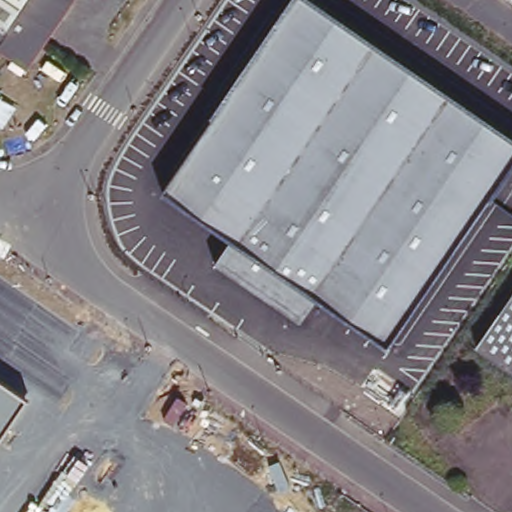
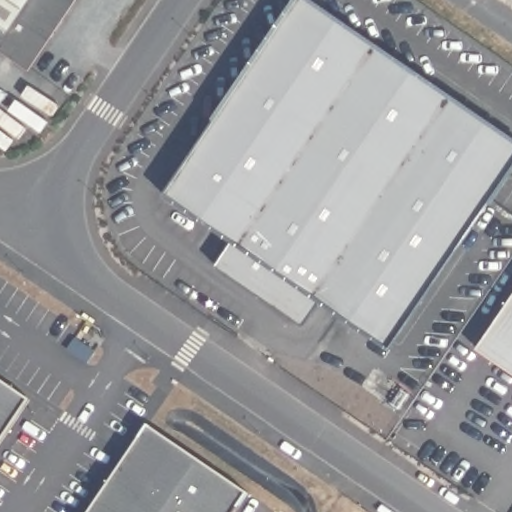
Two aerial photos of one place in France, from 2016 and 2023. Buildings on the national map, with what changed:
unchanged [(0,50),(0,0),(80,0),(32,70),(0,50)]
unchanged [(512,171),(395,343),(325,296),(308,320),(220,260),(227,247),(160,202),(296,3),(512,147),(512,171)]
unchanged [(512,304),(512,362),(485,343),(512,304)]
unchanged [(28,399),(0,440),(0,380),(28,399)]
new [(90,512),(155,418),(250,482),(230,512),(90,512)]

